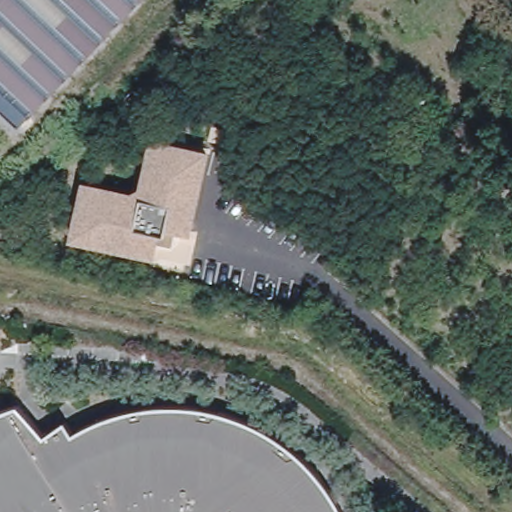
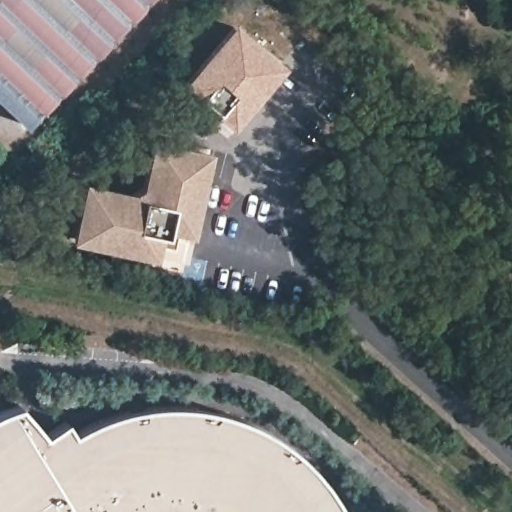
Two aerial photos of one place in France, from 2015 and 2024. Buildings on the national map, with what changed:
unchanged [(0,104),(0,0),(143,0),(23,126),(0,104)]
new [(284,65),(230,128),(178,84),(231,22),(284,65)]
unchanged [(198,237),(176,233),(174,241),(162,239),(159,258),(72,243),(83,180),(142,192),(152,136),(216,150),(198,237)]
unchanged [(347,512),(0,512),(0,406),(3,404),(18,399),(45,429),(65,415),(73,428),(103,412),(128,404),(143,402),(168,399),(198,400),(219,405),(244,413),(278,430),(300,447),(314,460),(341,497),(347,512)]

